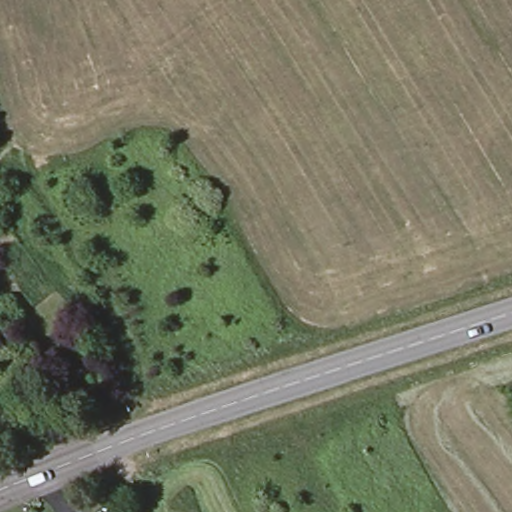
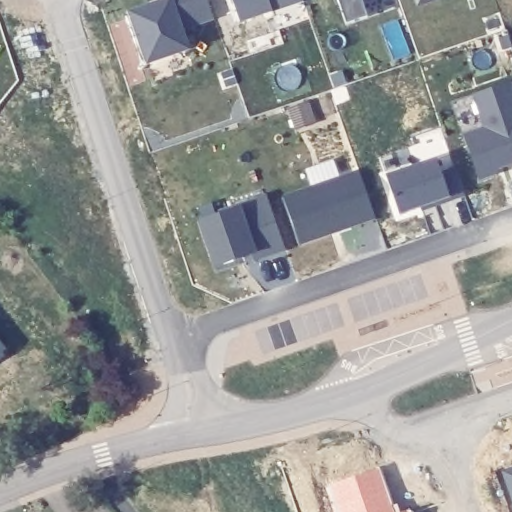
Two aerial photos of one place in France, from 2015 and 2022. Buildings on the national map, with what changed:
new [(213,19),(181,29),(188,51),(150,63),(132,15),(153,8),(151,2),(156,0),(207,0),(213,19)]
new [(240,20),(233,0),(294,0),(240,20)]
new [(367,19),(347,26),(337,0),(362,0),(367,19)]
new [(418,9),(415,0),(443,0),(418,9)]
new [(512,167),(498,172),(496,178),(480,183),(463,134),(483,127),(473,94),(512,81),(512,83),(512,167)]
new [(307,100),(314,119),(295,125),(289,107),(307,100)]
new [(437,159),(450,199),(400,214),(387,175),(437,159)]
new [(358,170),(376,221),(300,247),(282,195),(358,170)]
new [(285,248),(255,259),(252,252),(215,265),(200,220),(219,214),(218,211),(267,194),(285,248)]
new [(394,512),(341,512),(332,485),(378,468),(394,512)]
new [(512,501),(502,472),(512,468),(512,501)]

